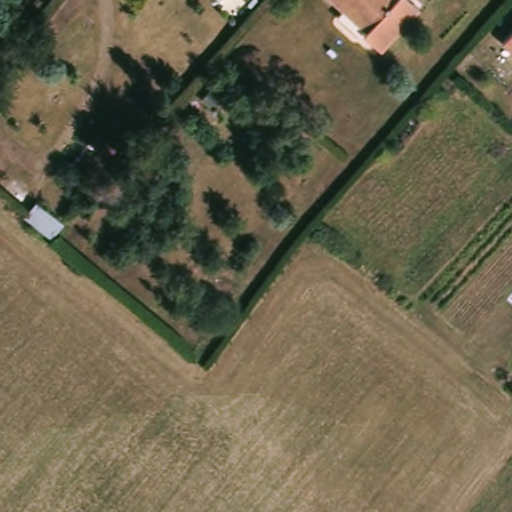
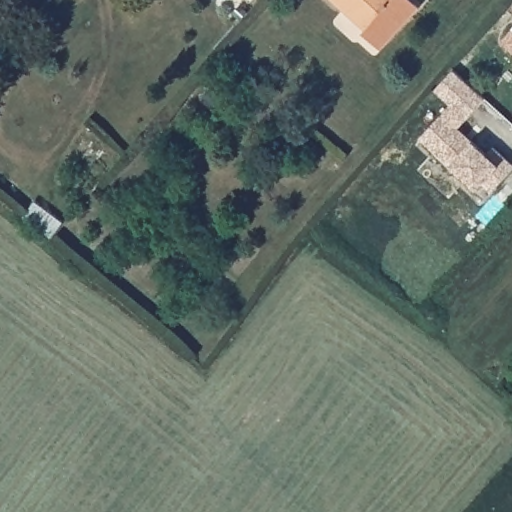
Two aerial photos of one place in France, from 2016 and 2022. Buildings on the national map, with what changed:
unchanged [(386,44),(381,49),(361,29),(366,23),(341,0),(404,0),(417,12),(386,44)]
unchanged [(512,46),(505,40),(512,31),(512,46)]
new [(474,144),(487,155),(494,148),(512,165),(512,168),(492,191),(483,182),(477,190),(453,167),(422,137),(452,105),(437,90),(455,71),(486,99),(458,129),(474,144)]
unchanged [(24,217),(36,200),(65,225),(50,241),(24,217)]

